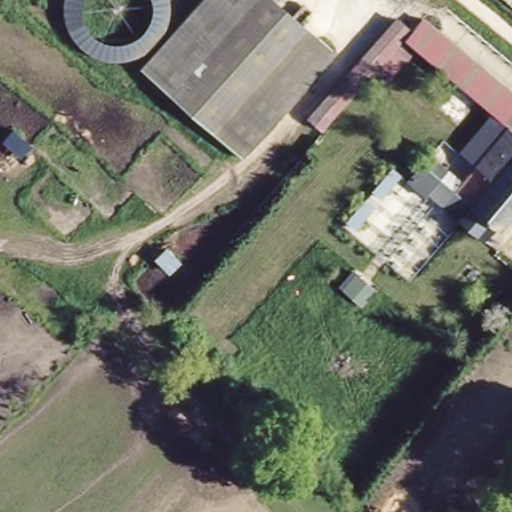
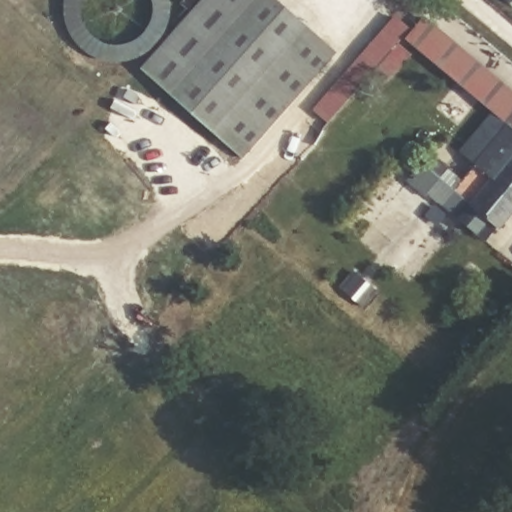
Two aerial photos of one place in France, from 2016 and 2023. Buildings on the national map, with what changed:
unchanged [(168,16),(165,24),(162,31),(156,40),(150,46),(144,52),(137,56),(129,59),(119,61),(110,61),(102,59),(94,55),(84,50),(75,42),(70,37),(67,29),(65,21),(63,11),(63,3),(63,0),(81,0),(80,2),(80,8),(80,14),(82,20),(85,26),(90,32),(95,37),(103,40),(111,42),(117,42),(122,42),(129,41),(134,39),(139,35),(142,31),(147,24),(150,17),(152,10),(152,4),(151,0),(169,0),(169,7),(168,16)]
unchanged [(240,160),(139,69),(199,0),(279,0),(337,52),(240,160)]
unchanged [(309,112),(393,15),(407,27),(420,16),(512,87),(512,206),(487,234),(460,210),(471,196),(457,183),(502,124),(403,43),(327,131),(309,112)]
unchanged [(430,159),(439,167),(425,182),(416,173),(430,159)]

